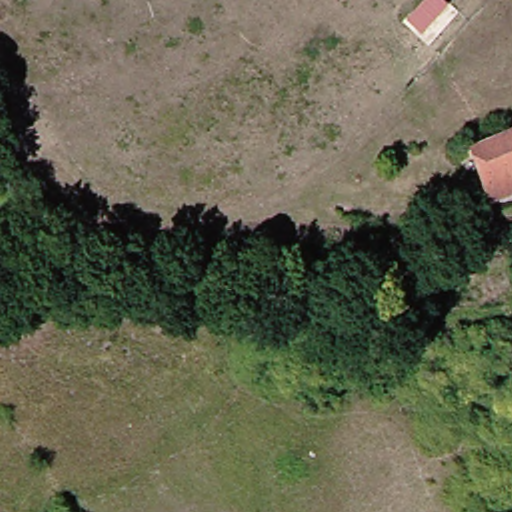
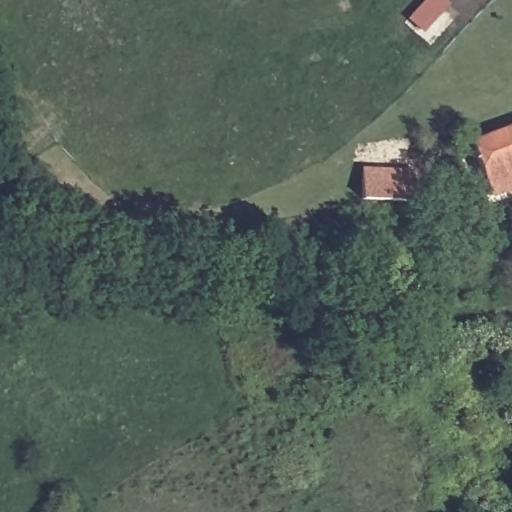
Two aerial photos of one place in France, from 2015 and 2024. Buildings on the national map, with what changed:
unchanged [(473,145),(512,131),(512,191),(492,198),(473,145)]
new [(415,200),(359,199),(361,167),(413,169),(415,200)]

